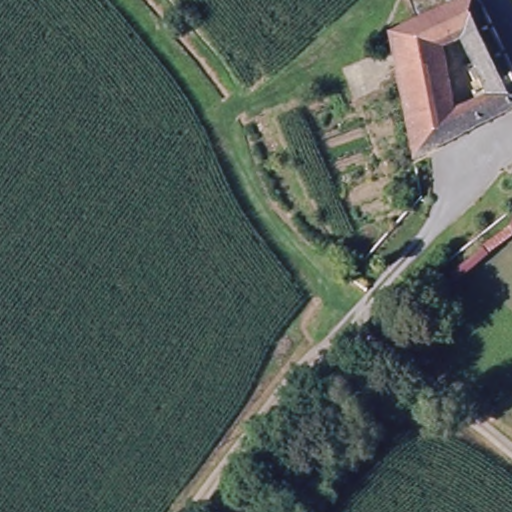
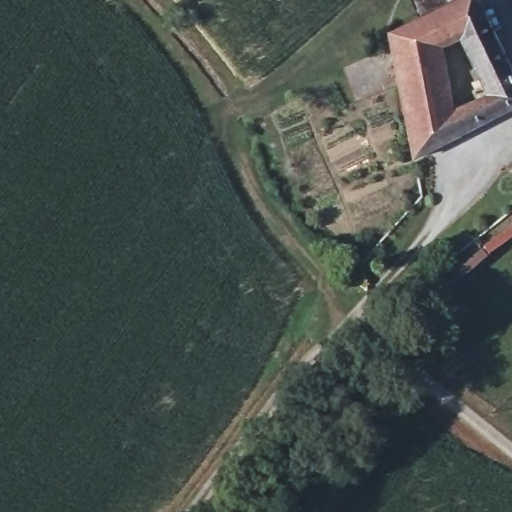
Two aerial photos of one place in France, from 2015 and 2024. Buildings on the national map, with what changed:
unchanged [(392,37),(392,31),(418,18),(454,0),(480,0),(512,71),(512,112),(416,161),(413,163),(392,37)]

